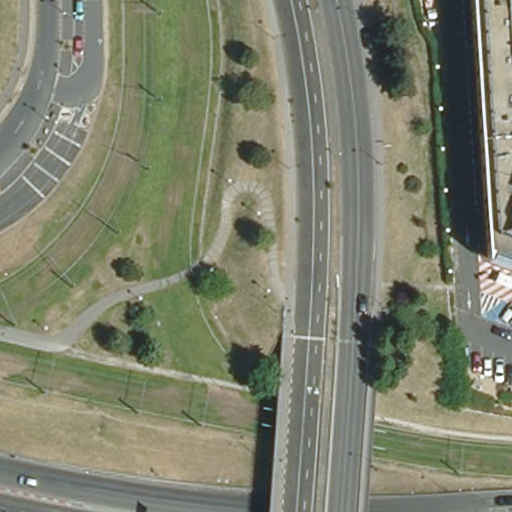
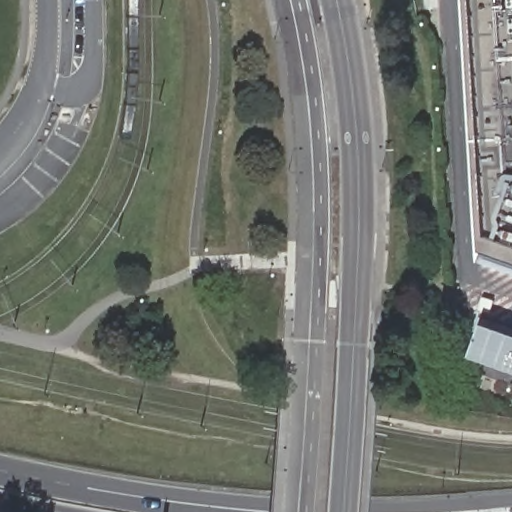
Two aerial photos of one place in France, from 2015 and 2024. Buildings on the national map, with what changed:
unchanged [(484,210),(483,195),(472,0),(512,0),(512,219),(499,215),(484,210)]
unchanged [(512,219),(512,266),(503,263),(487,257),(486,239),(484,210),(499,215),(512,219)]
new [(483,327),(512,338),(512,373),(472,359),(483,327)]

